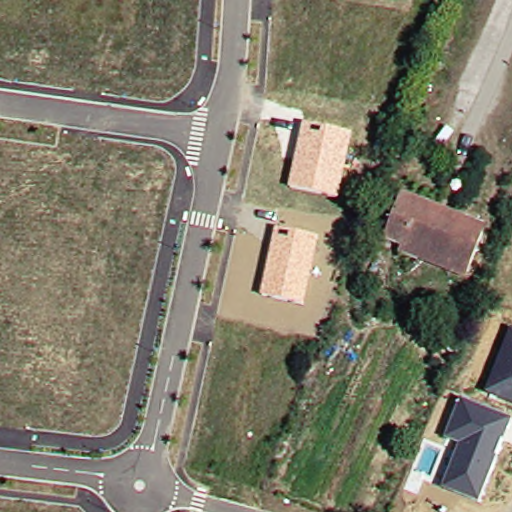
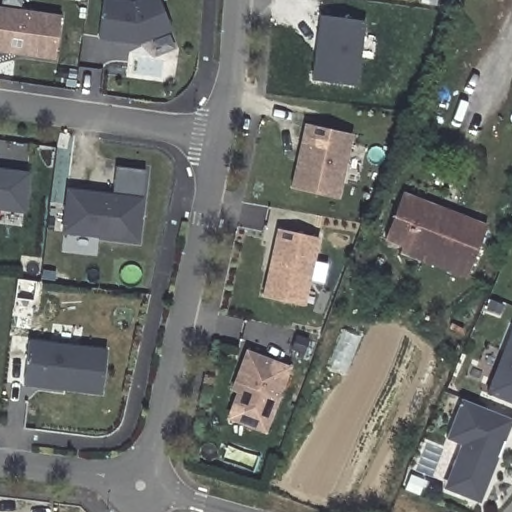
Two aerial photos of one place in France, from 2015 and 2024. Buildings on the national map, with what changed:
new [(99,38),(104,0),(160,0),(173,31),(139,45),(99,38)]
new [(0,51),(0,6),(61,15),(54,59),(0,51)]
new [(318,39),(322,16),(364,21),(356,86),(313,80),(317,51),(318,39)]
unchanged [(353,133),(339,201),(288,190),(303,124),(353,133)]
unchanged [(25,213),(0,210),(0,167),(30,171),(25,213)]
new [(144,196),(139,242),(63,233),(68,188),(144,196)]
unchanged [(401,252),(403,245),(386,238),(403,195),(441,209),(468,220),(487,227),(470,271),(467,278),(401,252)]
unchanged [(318,239),(303,304),(259,295),(274,229),(318,239)]
unchanged [(512,329),(512,403),(487,394),(512,329)]
demolished [(361,336),(328,419),(309,411),(342,330),(361,336)]
new [(29,341),(106,350),(101,394),(24,384),(29,341)]
new [(291,367),(267,432),(228,417),(236,394),(231,392),(245,349),(291,367)]
unchanged [(511,419),(479,502),(443,488),(458,445),(445,438),(459,401),(511,419)]

